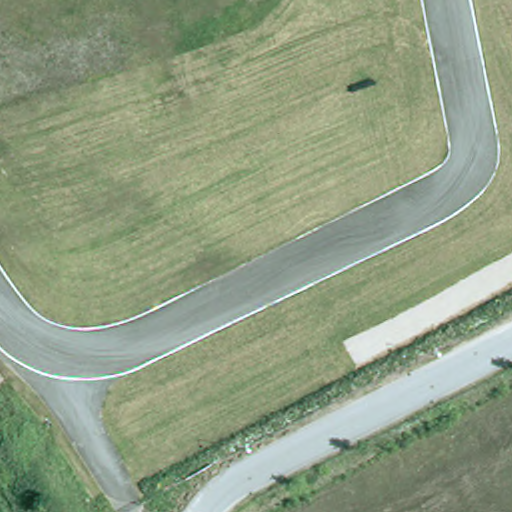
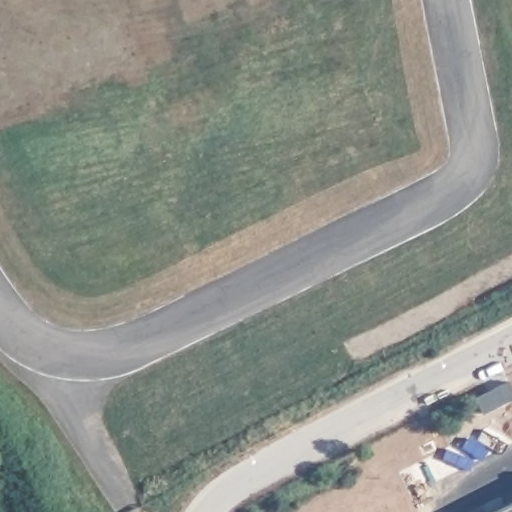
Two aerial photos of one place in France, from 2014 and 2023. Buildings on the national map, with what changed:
new [(512,502),(512,512),(493,512),(512,502)]

